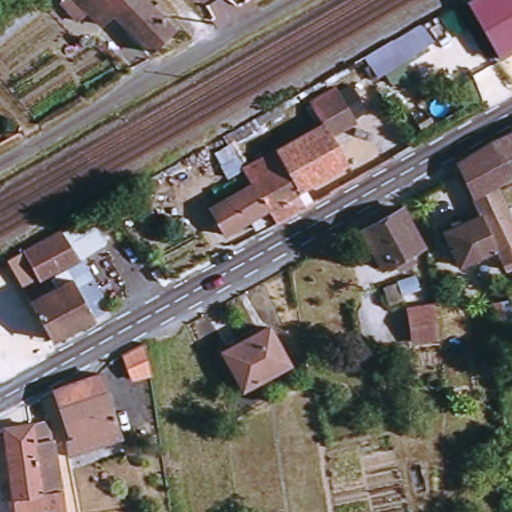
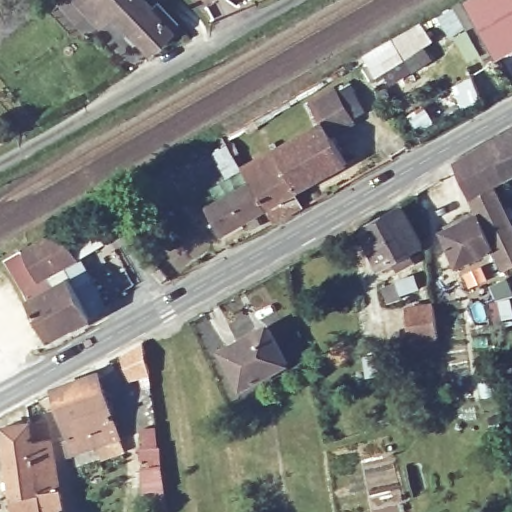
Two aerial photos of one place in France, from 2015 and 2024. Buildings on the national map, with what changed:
unchanged [(155,54),(118,14),(104,25),(90,10),(78,21),(61,2),(63,0),(149,0),(179,32),(155,54)]
unchanged [(466,2),(469,0),(512,0),(512,51),(498,59),(466,2)]
unchanged [(361,60),(422,26),(436,43),(375,80),(361,60)]
unchanged [(246,169),(265,160),(310,134),(326,125),(315,104),(340,90),(357,121),(332,135),(350,164),(299,194),(305,209),(276,225),(268,210),(255,185),(246,169)]
unchanged [(487,145),(493,141),(512,132),(512,177),(506,180),(487,145)]
unchanged [(506,180),(493,187),(471,198),(456,164),(487,145),(506,180)]
unchanged [(213,209),(255,185),(268,210),(260,215),(264,224),(255,229),(251,220),(227,234),(213,209)]
unchanged [(512,227),(512,266),(504,269),(494,248),(479,215),(471,198),(493,187),(512,227)]
unchanged [(398,209),(419,245),(378,268),(358,230),(398,209)]
unchanged [(440,233),(479,215),(494,248),(455,265),(440,233)]
unchanged [(11,263),(64,230),(81,258),(44,280),(51,292),(73,279),(96,318),(57,341),(11,263)]
unchanged [(404,307),(432,303),(437,334),(408,338),(404,307)]
unchanged [(221,353),(266,328),(286,365),(241,390),(221,353)]
unchanged [(132,379),(120,353),(137,344),(147,374),(132,379)]
unchanged [(97,377),(117,438),(65,455),(62,442),(67,438),(52,391),(97,377)]
unchanged [(34,425),(52,421),(66,501),(67,512),(46,512),(34,425)]
unchanged [(18,504),(7,427),(34,425),(46,512),(0,512),(0,507),(18,504)]
new [(146,493),(142,471),(145,470),(137,448),(142,447),(140,429),(157,426),(169,503),(154,505),(151,492),(146,493)]

